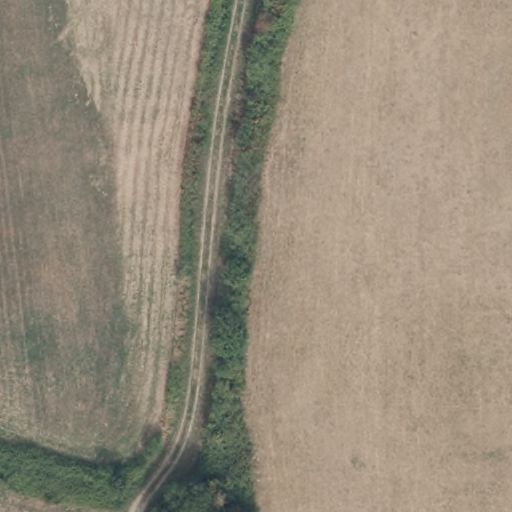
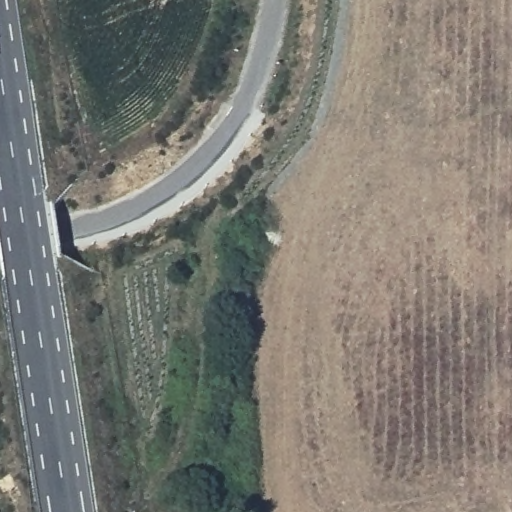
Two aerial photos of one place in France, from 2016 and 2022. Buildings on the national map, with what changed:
[]

